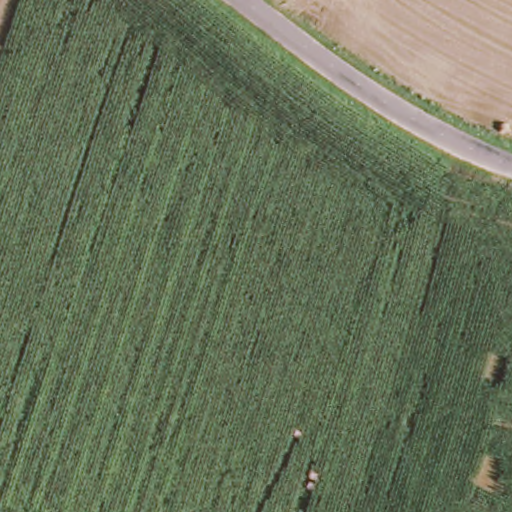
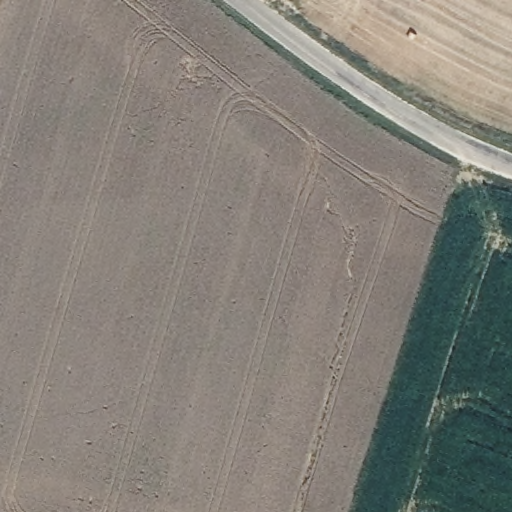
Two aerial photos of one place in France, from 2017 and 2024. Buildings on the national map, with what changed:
[]

